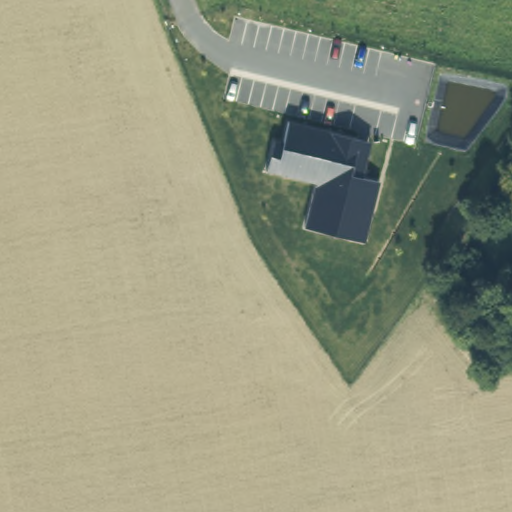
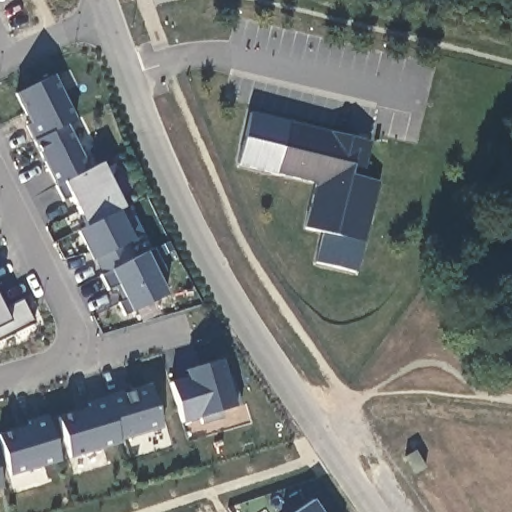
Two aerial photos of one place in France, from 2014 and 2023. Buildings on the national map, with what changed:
new [(24,126),(28,124),(14,95),(50,76),(73,121),(31,141),(24,126)]
new [(269,173),(240,166),(250,114),(280,121),(269,173)]
unchanged [(306,230),(316,185),(269,173),(280,121),(369,143),(360,178),(377,183),(365,242),(306,230)]
new [(31,141),(64,125),(86,170),(54,186),(31,141)]
new [(53,187),(99,164),(121,209),(84,227),(69,198),(61,202),(53,187)]
new [(115,212),(120,223),(131,217),(140,236),(125,244),(132,259),(101,274),(90,252),(86,254),(75,231),(115,212)]
new [(317,265),(324,234),(365,242),(358,274),(317,265)]
new [(157,276),(167,295),(131,313),(125,316),(119,305),(125,302),(117,287),(109,290),(101,274),(109,270),(132,259),(146,253),(154,251),(165,273),(157,276)]
new [(0,340),(0,295),(6,308),(23,300),(35,324),(0,340)]
new [(235,409),(222,412),(225,419),(204,425),(202,419),(184,425),(170,384),(186,379),(184,371),(221,360),(226,379),(234,376),(241,406),(235,409)]
new [(119,392),(120,395),(147,387),(160,428),(117,441),(104,398),(104,397),(119,392)]
new [(86,409),(85,404),(104,398),(117,441),(117,443),(67,458),(55,418),(86,409)]
new [(27,427),(25,422),(45,416),(57,461),(7,476),(0,451),(0,435),(27,427)]
new [(1,488),(0,488),(0,485),(1,488)]

